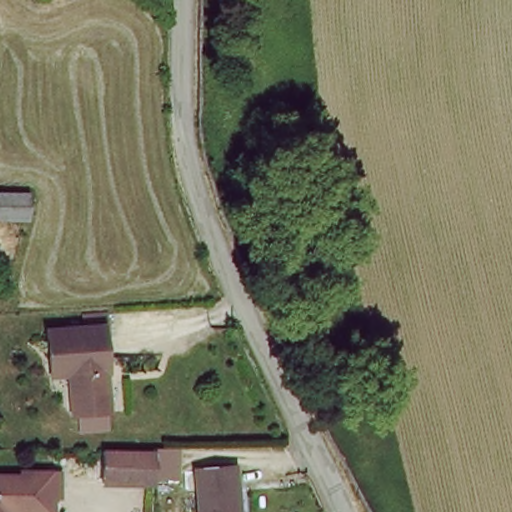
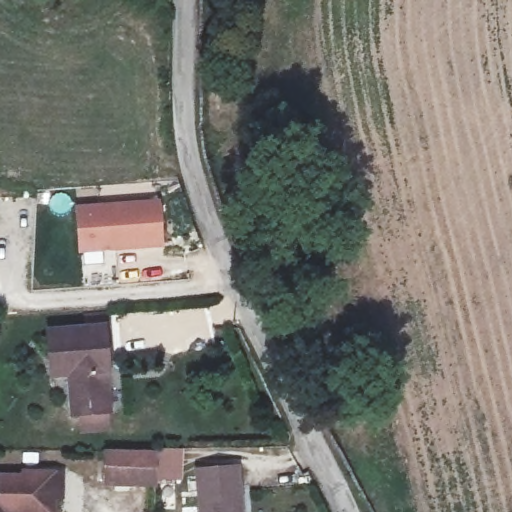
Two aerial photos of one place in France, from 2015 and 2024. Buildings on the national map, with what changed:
demolished [(37,189),(36,219),(0,220),(0,187),(37,189)]
new [(76,204),(160,199),(163,246),(79,252),(76,204)]
unchanged [(74,419),(71,380),(51,380),(48,329),(110,325),(117,417),(74,419)]
unchanged [(158,451),(185,450),(182,480),(158,479),(158,488),(104,487),(105,450),(158,451)]
unchanged [(202,467),(241,464),(244,512),(205,512),(202,467)]
unchanged [(21,478),(23,471),(62,471),(64,512),(0,512),(0,478),(21,478)]

